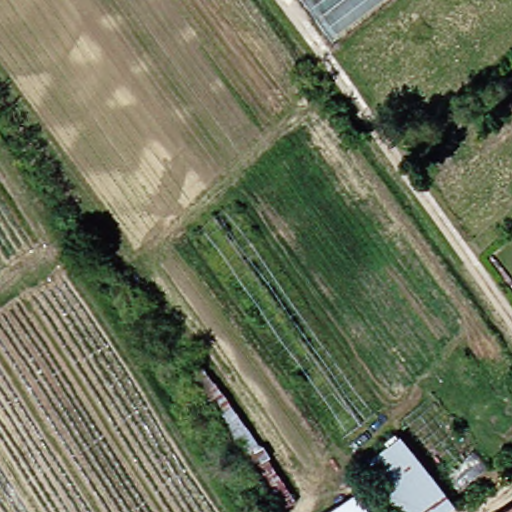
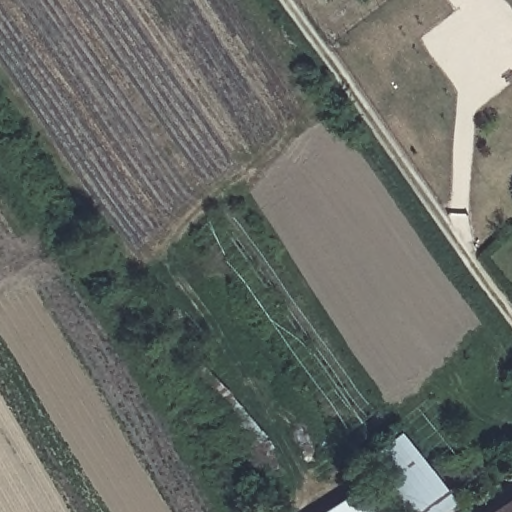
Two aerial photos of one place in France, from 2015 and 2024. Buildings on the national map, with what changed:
demolished [(301,0),(380,0),(331,37),(301,0)]
unchanged [(396,433),(449,503),(435,512),(389,512),(356,465),(396,433)]
new [(356,493),(369,512),(328,512),(356,493)]
unchanged [(509,504),(512,503),(512,512),(496,512),(509,504)]

